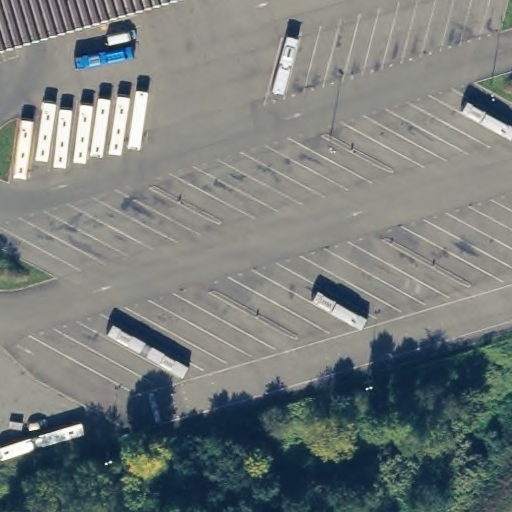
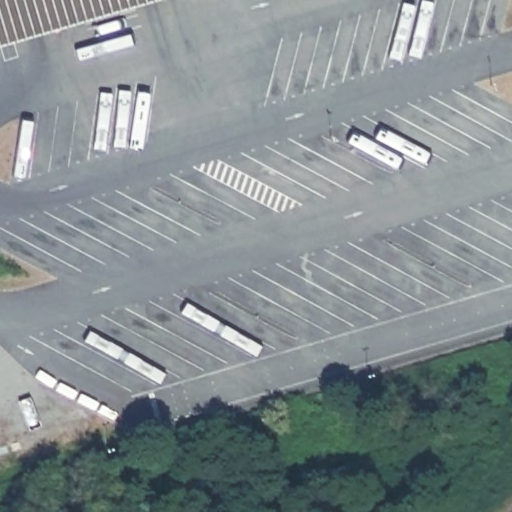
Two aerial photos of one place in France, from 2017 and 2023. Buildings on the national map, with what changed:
unchanged [(0,0),(149,0),(0,44),(0,0)]

